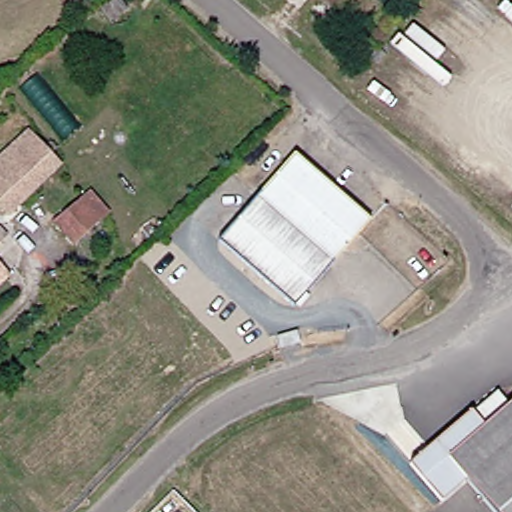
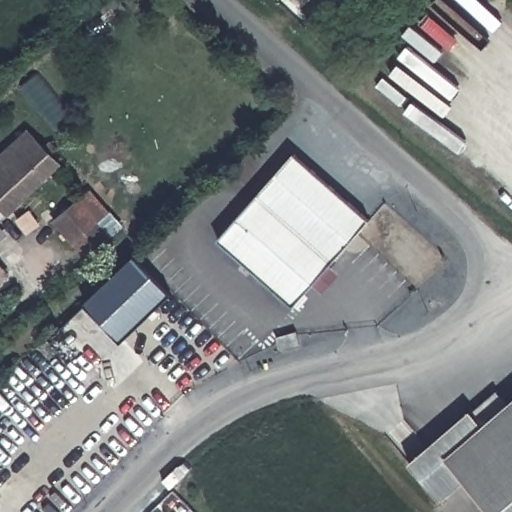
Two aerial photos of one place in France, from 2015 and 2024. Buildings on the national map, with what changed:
unchanged [(54,164),(39,178),(4,212),(0,208),(0,152),(22,132),(54,164)]
unchanged [(258,195),(295,154),(371,220),(334,262),(258,195)]
unchanged [(45,219),(70,199),(78,192),(97,215),(89,222),(67,243),(45,219)]
unchanged [(334,262),(295,307),(219,240),(258,195),(334,262)]
new [(136,258),(170,294),(119,342),(85,305),(136,258)]
unchanged [(281,349),(277,337),(297,331),(300,341),(301,343),(281,349)]
unchanged [(491,512),(482,500),(468,512),(447,512),(407,466),(410,464),(433,444),(469,413),(470,414),(495,392),(507,406),(512,403),(512,512),(491,512)]

